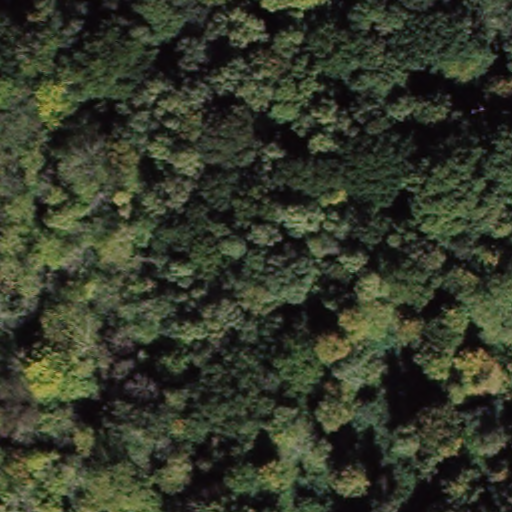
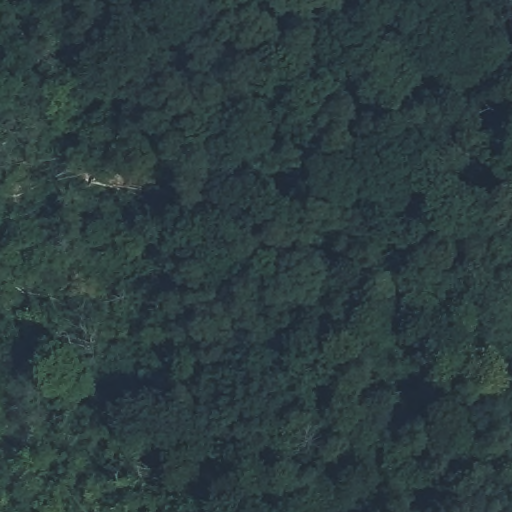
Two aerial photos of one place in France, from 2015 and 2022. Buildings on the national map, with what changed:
[]

